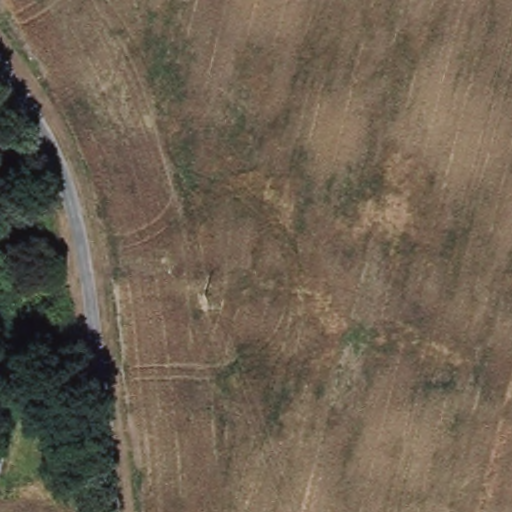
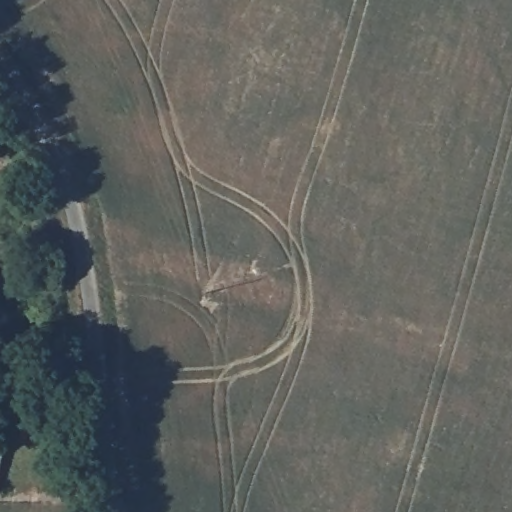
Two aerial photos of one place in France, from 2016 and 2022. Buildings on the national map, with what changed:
unchanged [(1,454),(0,460),(0,454),(1,454)]

